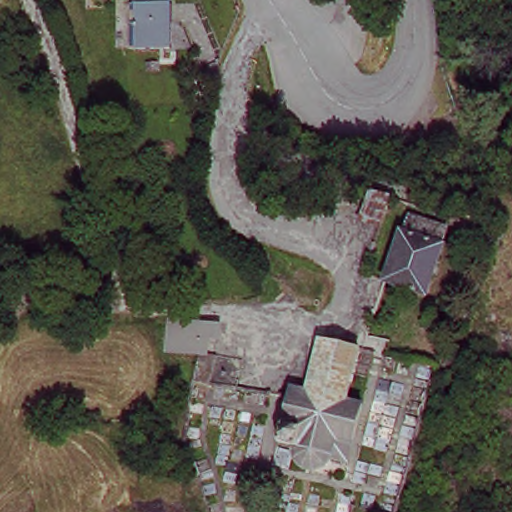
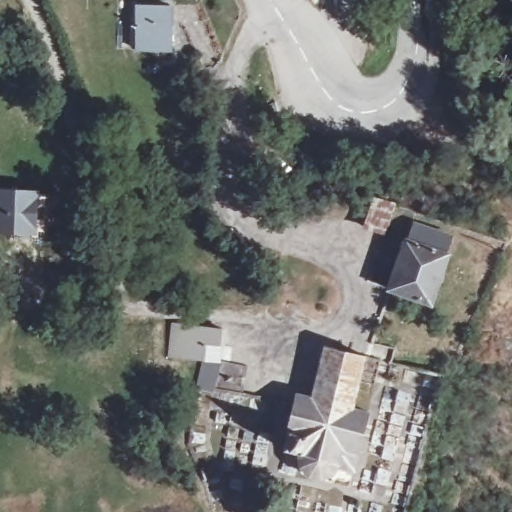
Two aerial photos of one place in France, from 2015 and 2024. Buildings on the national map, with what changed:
unchanged [(149,0),(178,4),(177,22),(170,21),(168,41),(143,37),(145,0),(149,0)]
new [(42,234),(0,234),(0,187),(45,189),(42,234)]
unchanged [(384,225),(367,217),(375,198),(380,189),(396,195),(384,225)]
unchanged [(382,283),(400,238),(406,240),(414,222),(455,236),(427,300),(382,283)]
unchanged [(205,318),(202,341),(185,340),(186,317),(205,318)]
unchanged [(352,404),(367,408),(356,462),(334,456),(332,468),(308,462),(310,448),(292,442),(300,387),(313,390),(315,391),(326,343),(361,353),(352,404)]
unchanged [(205,354),(230,359),(225,383),(200,378),(205,354)]

